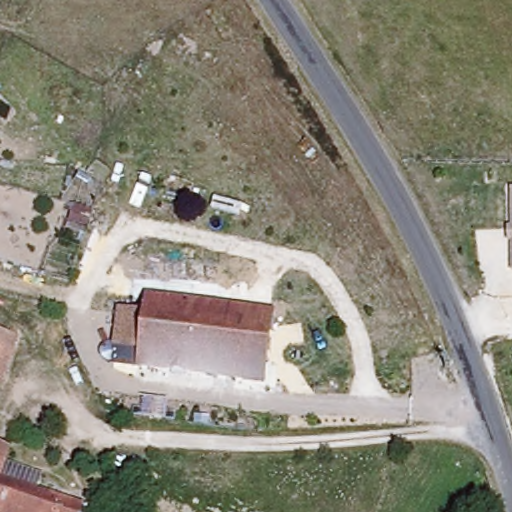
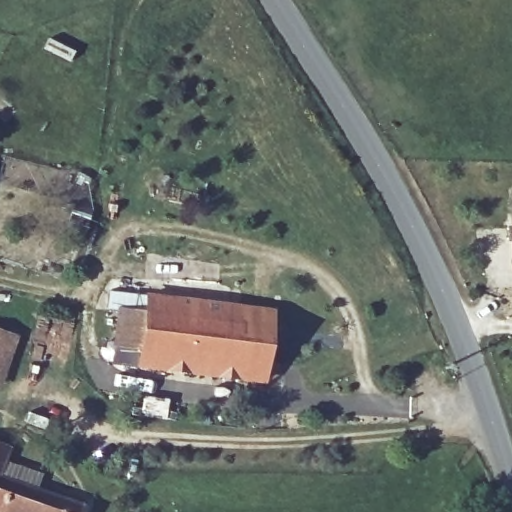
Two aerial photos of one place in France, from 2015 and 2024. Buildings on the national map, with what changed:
unchanged [(512,274),(511,274),(511,242),(506,240),(505,228),(511,226),(510,188),(512,187),(512,274)]
unchanged [(266,381),(140,368),(142,354),(116,350),(120,319),(147,321),(151,295),(273,309),(266,381)]
unchanged [(0,375),(0,338),(12,342),(0,375)]
unchanged [(87,503),(85,512),(0,512),(0,442),(18,447),(8,480),(87,503)]

